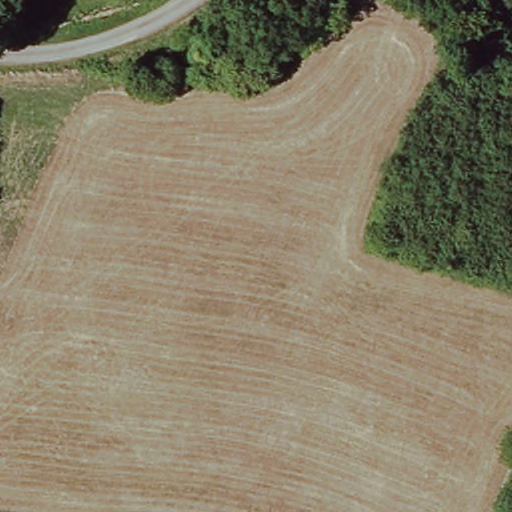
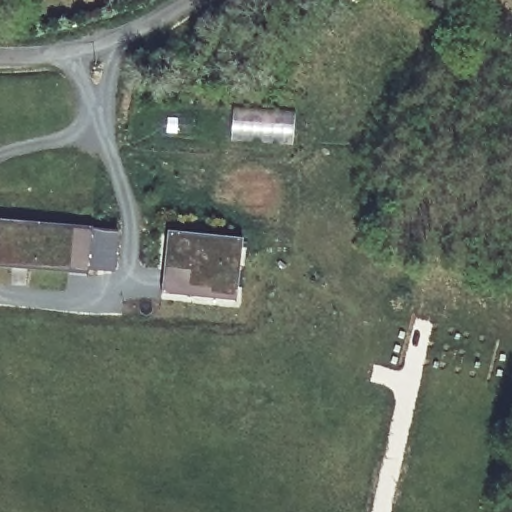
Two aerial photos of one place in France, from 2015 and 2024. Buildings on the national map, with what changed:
new [(88,274),(0,266),(0,220),(93,228),(88,274)]
new [(93,231),(118,234),(114,273),(89,271),(93,231)]
new [(243,241),(236,300),(163,294),(168,233),(243,241)]

